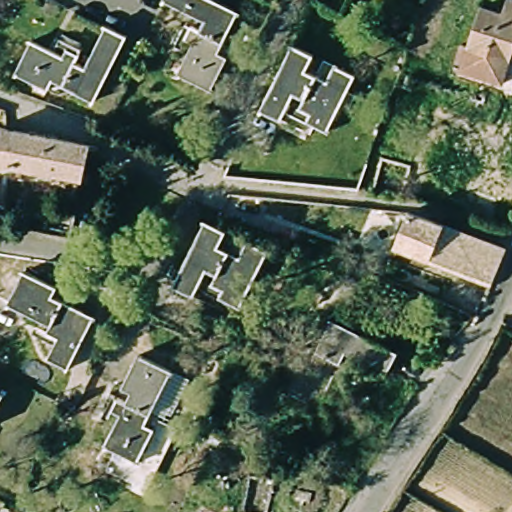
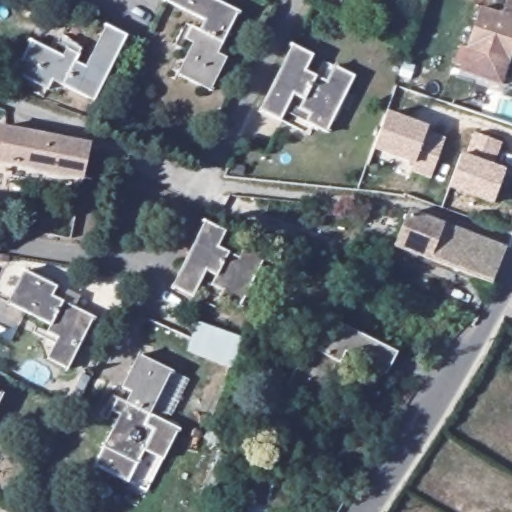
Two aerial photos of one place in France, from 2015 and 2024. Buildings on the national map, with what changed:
unchanged [(472,45),(480,7),(507,13),(510,0),(512,1),(512,65),(507,85),(454,71),(463,43),(472,45)]
unchanged [(31,43),(63,59),(67,51),(78,56),(74,64),(83,69),(105,29),(106,26),(128,38),(127,39),(95,101),(53,80),(49,88),(16,72),(31,43)]
unchanged [(314,57),(306,73),(316,77),(324,62),(356,78),(327,133),(307,123),(313,111),(302,105),(305,100),(295,94),(282,119),(262,109),(273,88),(294,47),(314,57)]
new [(387,115),(428,129),(427,134),(445,140),(432,179),(412,172),(415,164),(375,150),(387,115)]
unchanged [(84,177),(0,162),(0,128),(91,145),(84,177)]
new [(465,155),(474,133),(503,144),(495,166),(506,170),(496,199),(476,192),(475,197),(449,187),(461,154),(465,155)]
unchanged [(512,205),(512,229),(509,230),(503,231),(468,218),(477,194),(512,205)]
unchanged [(396,246),(409,214),(507,250),(494,283),(396,246)]
unchanged [(207,223),(208,221),(213,224),(227,232),(219,246),(229,251),(237,236),(268,252),(239,309),(220,299),(225,288),(213,282),(216,275),(208,270),(194,298),(190,295),(174,287),(207,223)]
unchanged [(28,269),(30,270),(62,287),(57,294),(98,315),(71,367),(51,357),(61,338),(50,332),(53,325),(31,314),(11,304),(28,269)]
unchanged [(301,358),(309,362),(332,319),(398,353),(388,372),(347,352),(342,362),(350,366),(343,378),(330,372),(313,401),(287,388),(301,358)]
new [(242,338),(234,367),(187,353),(195,324),(242,338)]
unchanged [(149,429),(158,434),(142,467),(109,449),(124,419),(117,414),(123,401),(131,404),(136,395),(128,391),(144,360),(145,359),(176,376),(149,429)]
unchanged [(7,398),(0,411),(0,394),(7,398)]

